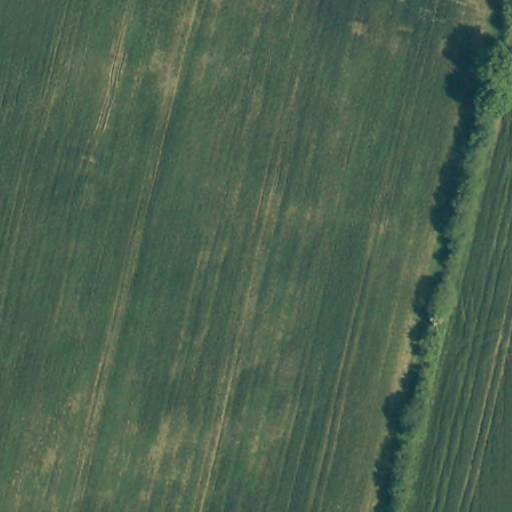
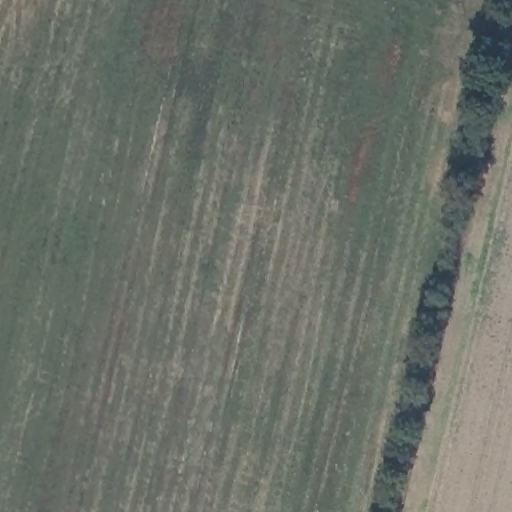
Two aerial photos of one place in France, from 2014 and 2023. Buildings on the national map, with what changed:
[]

